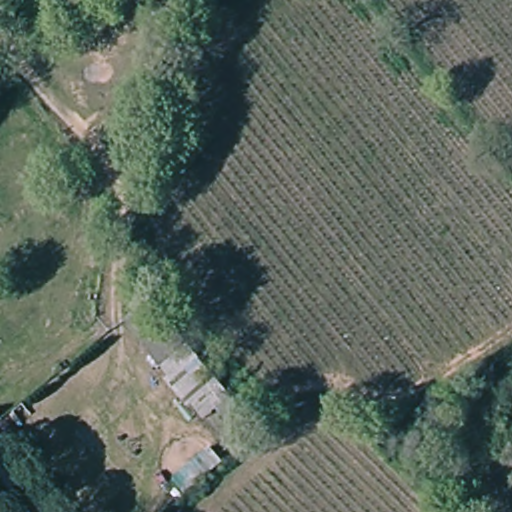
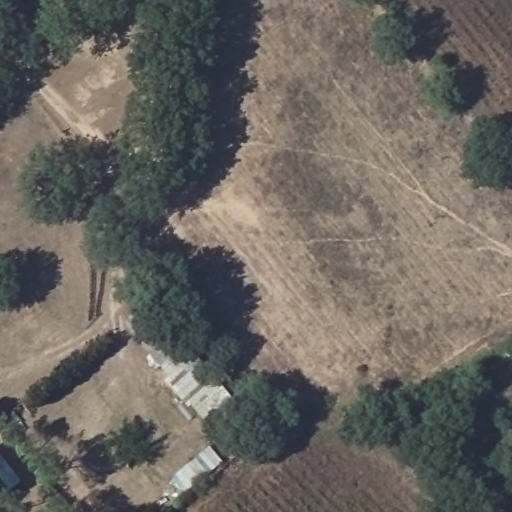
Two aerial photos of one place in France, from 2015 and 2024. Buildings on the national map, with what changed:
unchanged [(149,296),(231,389),(205,410),(122,313),(149,296)]
unchanged [(182,494),(166,476),(207,442),(220,458),(182,494)]

